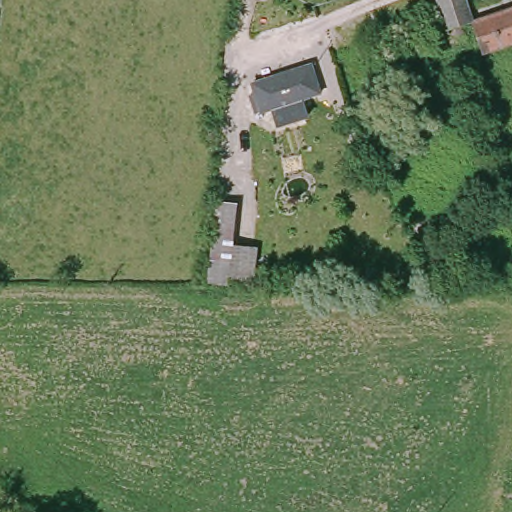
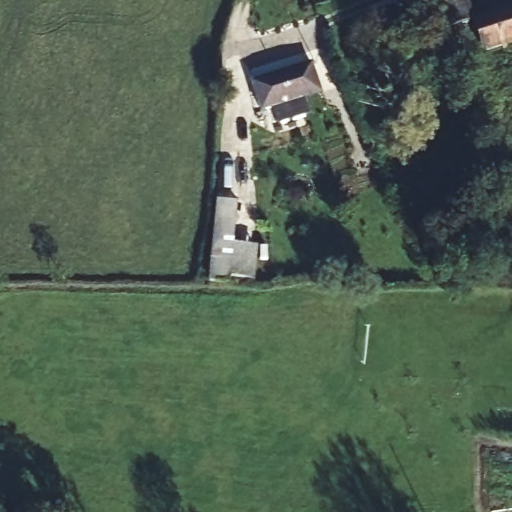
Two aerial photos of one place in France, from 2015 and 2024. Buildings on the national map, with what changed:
unchanged [(495,24),(482,28),(486,39),(472,43),(459,0),(486,0),(492,18),(512,12),(512,43),(502,47),(495,24)]
unchanged [(281,115),(277,102),(248,111),(245,100),(256,96),(252,87),(310,68),(317,88),(305,92),(310,106),(281,115)]
unchanged [(215,221),(230,223),(229,245),(242,246),(243,217),(257,219),(252,284),(225,281),(209,279),(215,221)]

